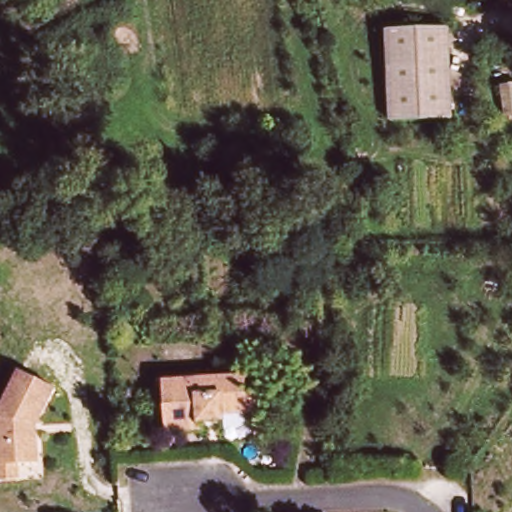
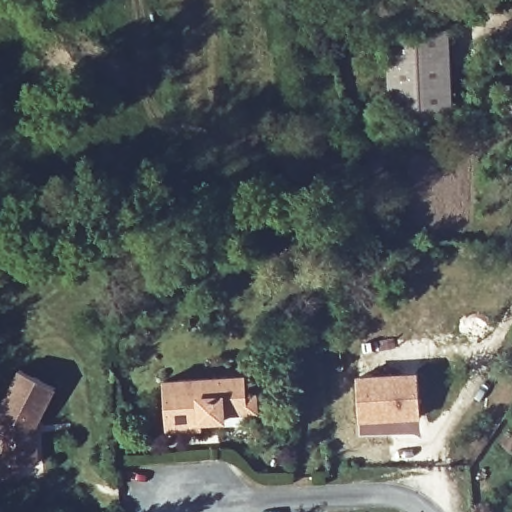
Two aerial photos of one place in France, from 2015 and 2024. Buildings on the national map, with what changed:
unchanged [(450,117),(390,119),(386,27),(447,25),(450,117)]
unchanged [(15,367),(51,385),(32,423),(35,461),(0,463),(0,397),(15,367)]
new [(421,423),(356,425),(354,371),(418,370),(421,423)]
unchanged [(222,426),(199,428),(199,437),(165,440),(163,388),(244,385),(245,402),(255,401),(255,420),(245,420),(221,421),(222,426)]

